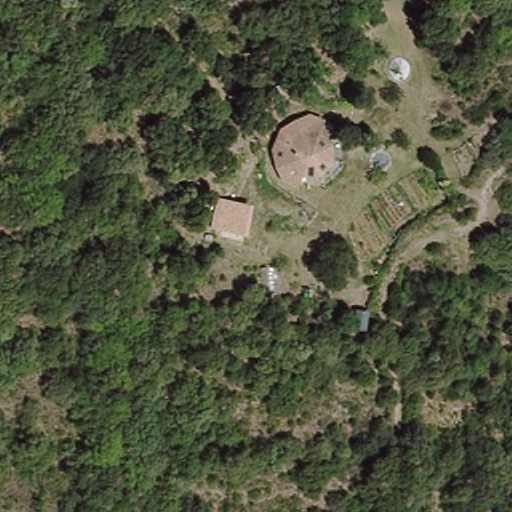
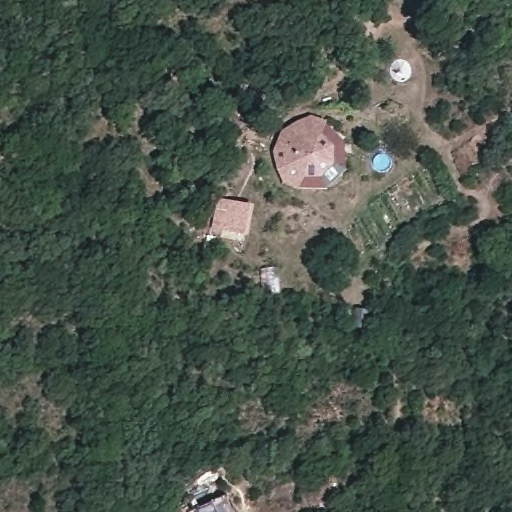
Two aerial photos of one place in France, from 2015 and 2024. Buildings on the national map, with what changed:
unchanged [(313,185),(305,183),(297,179),(291,174),(286,167),(283,159),(282,150),(283,142),(286,135),(290,127),(297,122),(304,118),(313,116),(318,116),(317,135),(323,136),(328,139),(331,143),(333,148),(333,154),(331,159),(327,162),(321,165),(315,165),(313,185)]
unchanged [(212,228),(218,199),(253,205),(248,235),(212,228)]
new [(227,493),(236,512),(195,512),(194,510),(227,493)]

